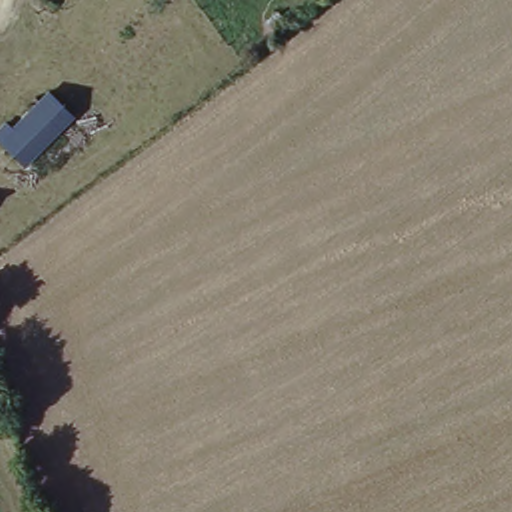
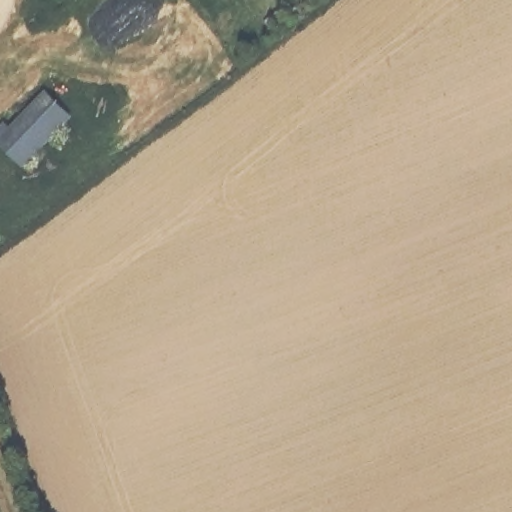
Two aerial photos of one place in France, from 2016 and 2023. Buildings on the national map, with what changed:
unchanged [(26,174),(0,150),(0,129),(5,124),(13,131),(48,94),(76,121),(26,174)]

